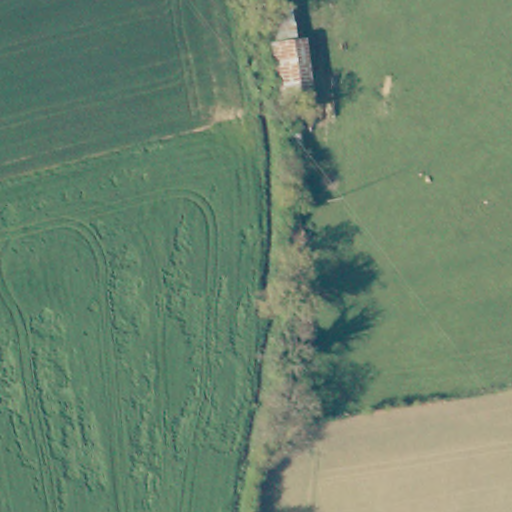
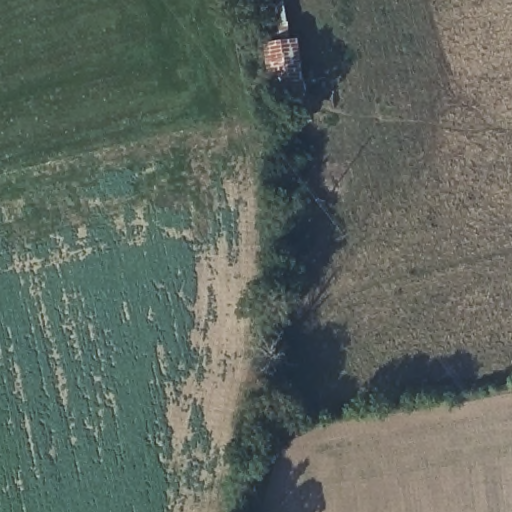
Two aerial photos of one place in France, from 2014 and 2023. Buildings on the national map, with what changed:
unchanged [(261,12),(290,9),(293,49),(267,52),(261,12)]
unchanged [(303,48),(311,109),(276,112),(267,52),(293,49),(303,48)]

